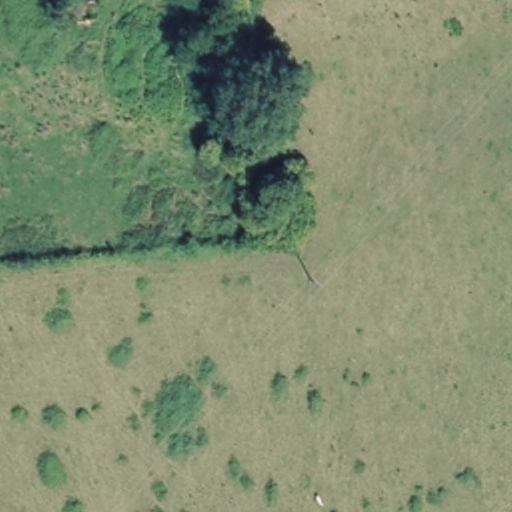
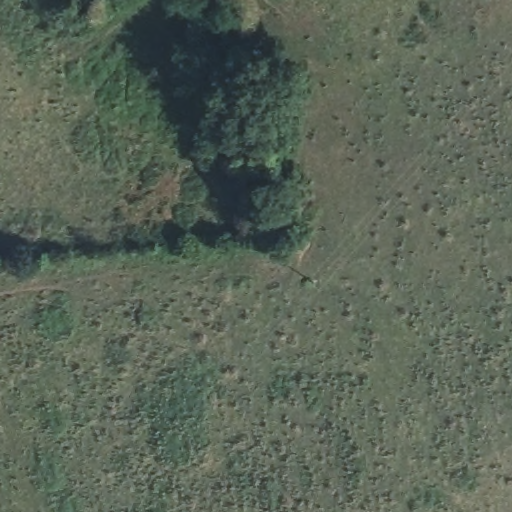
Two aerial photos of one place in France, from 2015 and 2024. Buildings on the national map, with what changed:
unchanged [(75,19),(56,25),(51,7),(70,1),(75,19)]

